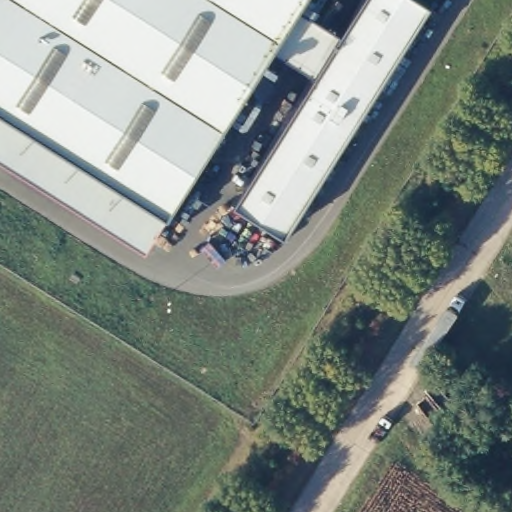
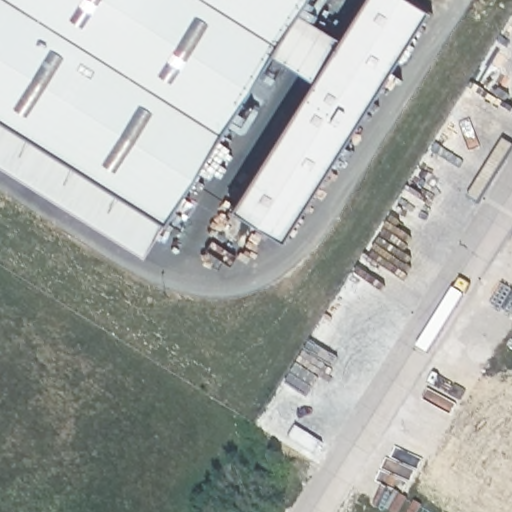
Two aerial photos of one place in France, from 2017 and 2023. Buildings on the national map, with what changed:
unchanged [(301,0),(300,2),(273,44),(168,211),(0,105),(0,0),(301,0)]
unchanged [(342,29),(360,0),(432,0),(287,231),(235,199),(316,70),(342,29)]
unchanged [(342,29),(316,70),(273,44),(300,2),(342,29)]

